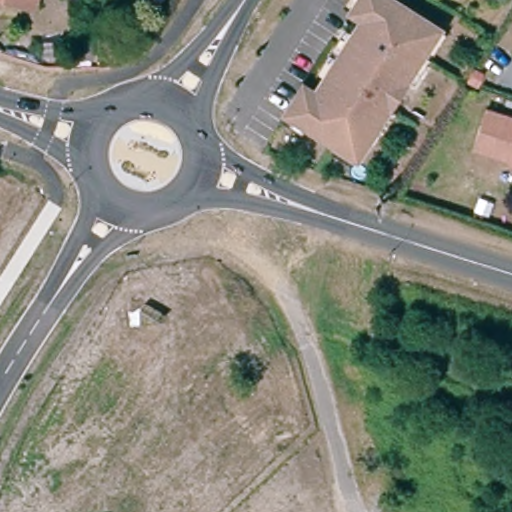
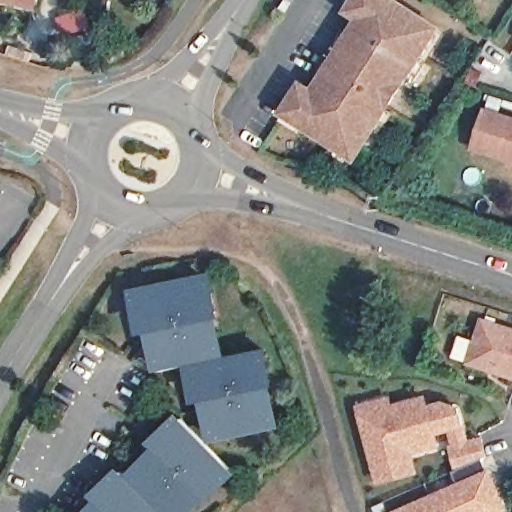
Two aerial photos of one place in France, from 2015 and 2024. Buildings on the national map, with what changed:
unchanged [(25,6),(0,0),(27,0),(25,6)]
unchanged [(335,137),(310,121),(306,129),(281,114),(286,106),(303,79),(315,87),(360,25),(356,22),(362,12),(352,6),(350,5),(353,0),(401,0),(436,22),(444,27),(412,77),(405,72),(387,100),(395,105),(380,130),(371,125),(355,150),(351,157),(330,144),(335,137)]
unchanged [(94,40),(115,29),(130,52),(111,67),(94,40)]
unchanged [(480,110),(512,120),(512,166),(465,151),(480,110)]
new [(212,441),(203,400),(195,401),(187,365),(159,370),(150,332),(140,335),(130,295),(215,276),(224,317),(220,318),(227,357),(270,349),(278,386),(274,387),(283,426),(212,441)]
new [(512,329),(512,376),(470,362),(483,320),(512,329)]
demolished [(242,512),(191,443),(176,455),(159,431),(210,393),(298,512),(242,512)]
new [(454,472),(459,469),(453,447),(448,430),(435,433),(437,442),(399,453),(400,457),(407,455),(412,473),(380,482),(362,416),(360,407),(389,399),(391,407),(426,398),(429,407),(445,403),(459,407),(463,425),(468,443),(482,439),(487,457),(484,458),(500,494),(506,508),(499,512),(398,512),(460,485),(454,472)]
new [(207,500),(195,512),(86,512),(96,501),(91,496),(119,468),(126,475),(155,447),(147,440),(180,412),(239,474),(210,502),(207,500)]
demolished [(179,478),(191,469),(202,483),(187,496),(201,512),(147,512),(142,506),(179,478)]

